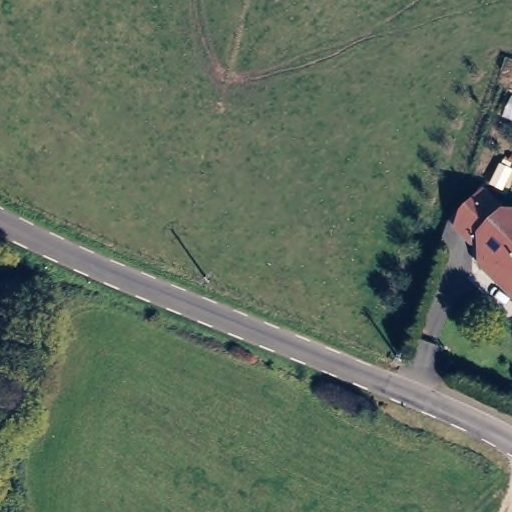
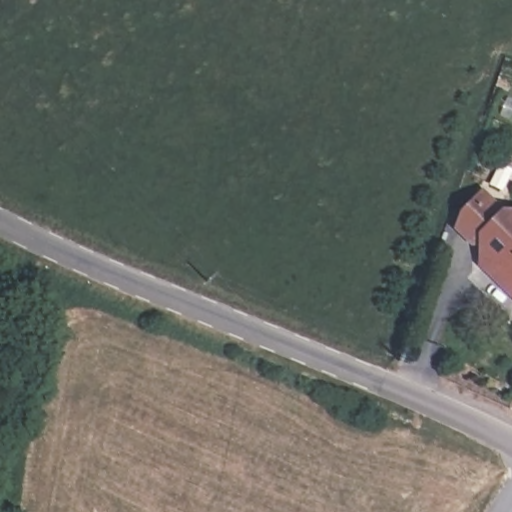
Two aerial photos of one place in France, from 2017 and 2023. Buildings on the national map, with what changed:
unchanged [(512,213),(512,292),(484,266),(483,244),(475,244),(457,227),(460,218),(484,193),(505,213),(512,213)]

